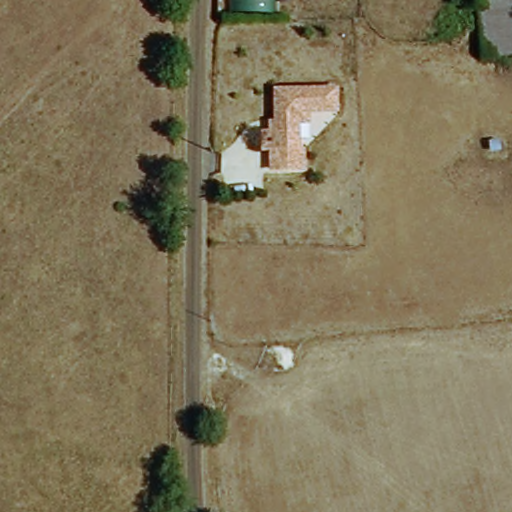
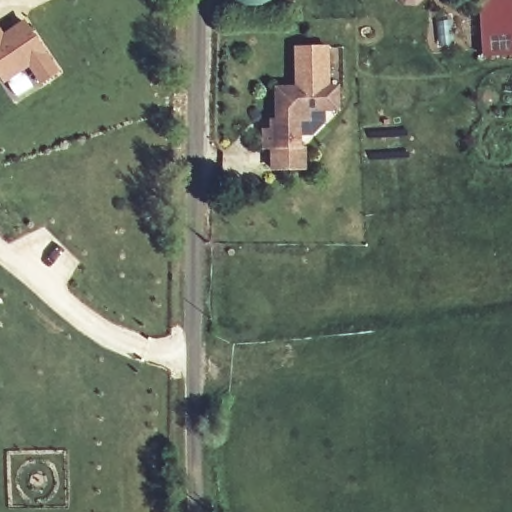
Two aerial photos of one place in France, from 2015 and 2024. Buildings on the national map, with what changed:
unchanged [(228,9),(228,0),(276,0),(276,9),(228,9)]
unchanged [(475,0),(510,0),(512,13),(512,50),(484,55),(475,0)]
new [(0,75),(0,32),(1,34),(23,20),(55,70),(40,80),(28,62),(3,79),(0,75)]
new [(296,85),(296,47),(329,46),(329,85),(296,85)]
unchanged [(310,106),(298,118),(298,145),(303,146),(303,166),(271,166),(271,147),(264,148),(264,127),(271,127),(271,116),(276,116),(276,86),(337,85),(337,106),(310,106)]

